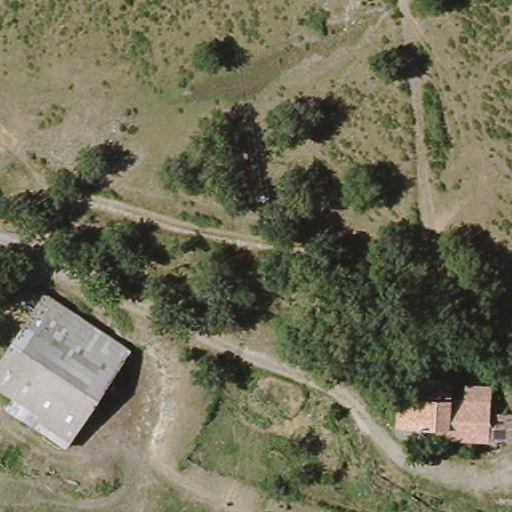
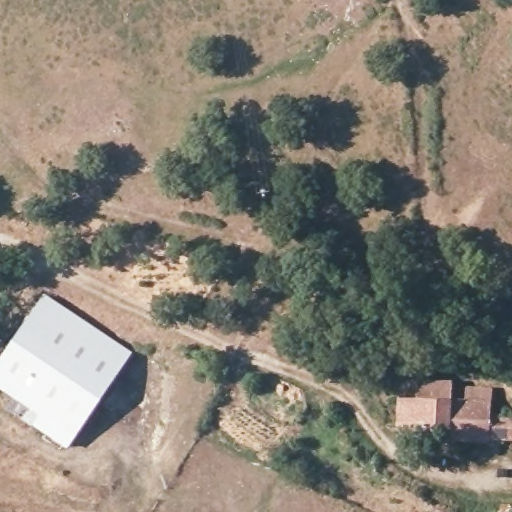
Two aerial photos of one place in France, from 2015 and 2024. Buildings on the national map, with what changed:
unchanged [(70,449),(30,428),(37,417),(0,397),(0,358),(45,296),(140,357),(70,449)]
unchanged [(452,395),(452,400),(498,399),(499,414),(512,414),(512,444),(439,445),(438,431),(399,432),(397,398),(452,395)]

